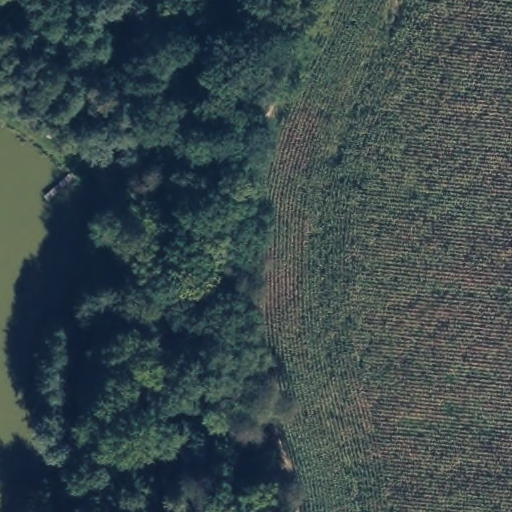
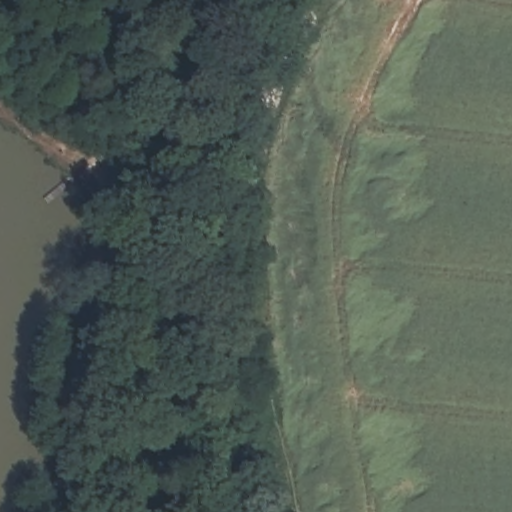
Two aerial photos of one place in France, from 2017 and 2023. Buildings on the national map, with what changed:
unchanged [(89,158),(110,136),(136,157),(120,179),(89,158)]

